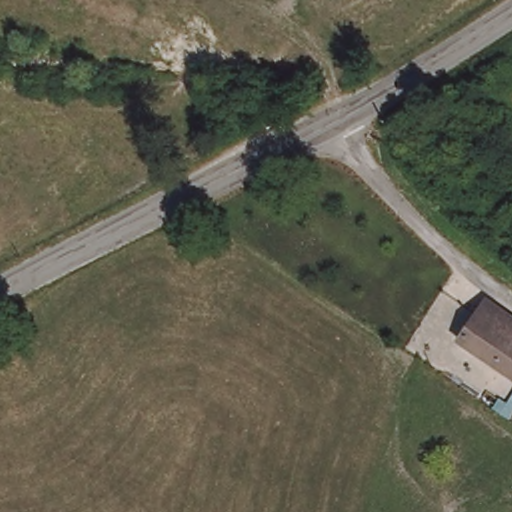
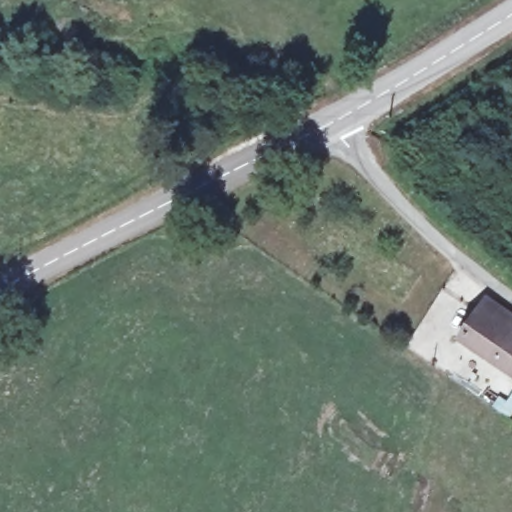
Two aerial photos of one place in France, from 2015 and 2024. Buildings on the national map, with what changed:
unchanged [(512,322),(512,380),(459,343),(490,305),(512,322)]

